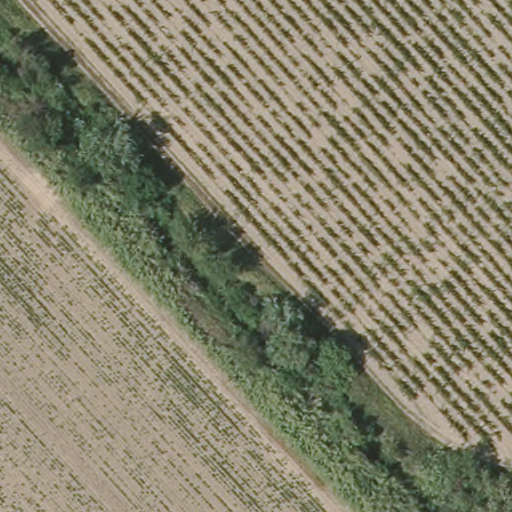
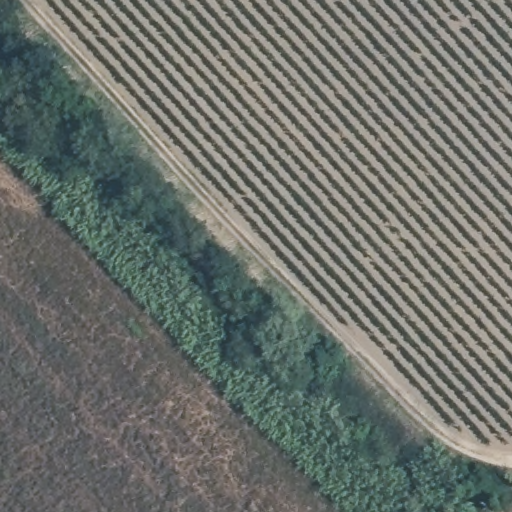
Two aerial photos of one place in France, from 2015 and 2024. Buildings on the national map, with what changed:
unchanged [(484,492),(470,508),(450,491),(465,475),(484,492)]

